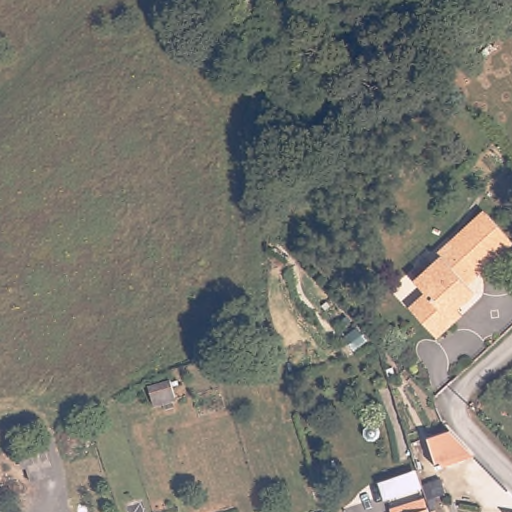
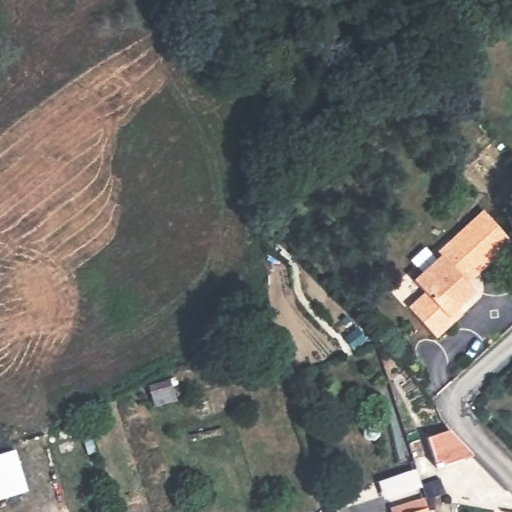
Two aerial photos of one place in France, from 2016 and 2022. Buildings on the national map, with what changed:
unchanged [(455,320),(436,335),(410,305),(426,289),(415,277),(442,254),(437,250),(451,238),(454,240),(486,210),(512,239),(512,241),(500,251),(480,270),(467,281),(475,290),(458,306),(464,312),(455,320)]
unchanged [(251,359),(254,370),(226,378),(222,367),(251,359)]
unchanged [(174,399),(154,405),(149,386),(168,380),(174,399)]
unchanged [(475,457),(436,470),(428,440),(452,432),(475,457)]
new [(15,448),(29,491),(0,500),(0,453),(15,448)]
unchanged [(430,512),(408,512),(428,506),(430,512)]

